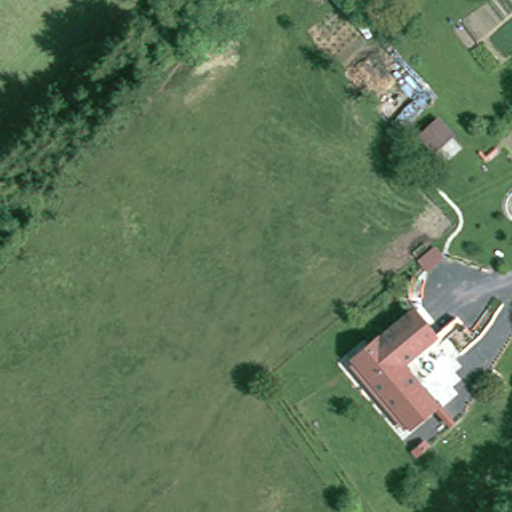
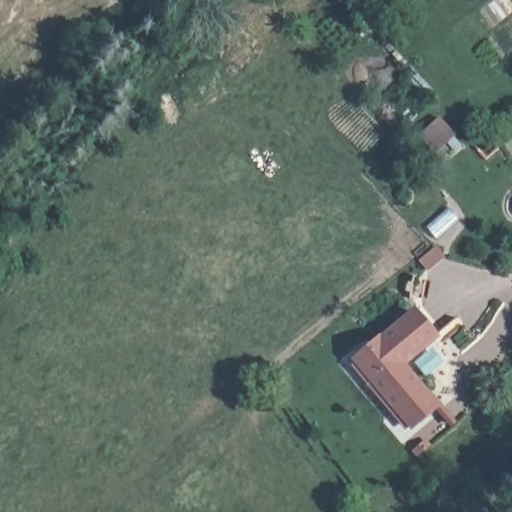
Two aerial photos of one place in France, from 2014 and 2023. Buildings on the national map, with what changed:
unchanged [(457,133),(438,150),(425,135),(443,119),(457,133)]
unchanged [(410,426),(397,411),(355,361),(413,312),(434,337),(402,364),(422,389),(435,404),(410,426)]

